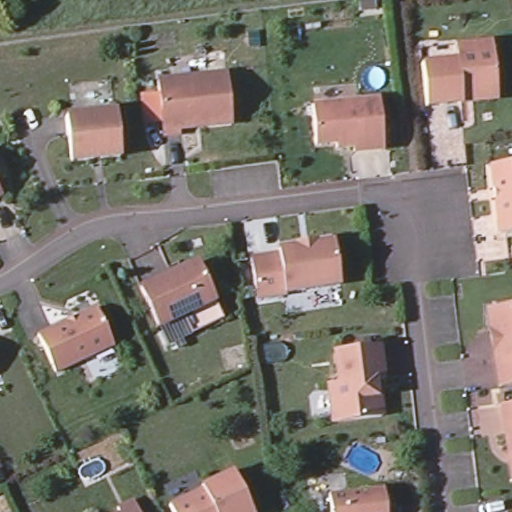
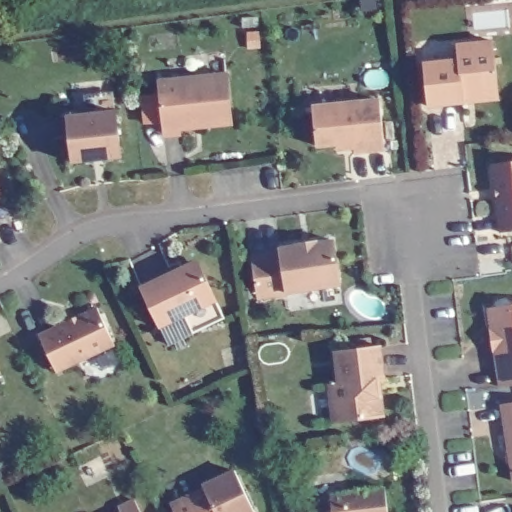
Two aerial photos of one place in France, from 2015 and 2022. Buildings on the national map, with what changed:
unchanged [(432,101),(428,58),(463,55),(461,40),(497,36),(499,51),(503,89),(498,94),(485,95),(468,97),(432,101)]
unchanged [(185,130),(185,135),(169,136),(163,80),(231,73),(236,120),(200,124),(200,127),(185,130)]
unchanged [(355,147),(337,148),(337,143),(316,145),(312,107),(380,100),(384,149),(355,152),(355,147)]
unchanged [(72,162),(67,116),(74,115),(115,111),(116,111),(121,157),(102,159),(93,160),(72,162)]
unchanged [(512,227),(505,227),(496,159),(512,157),(512,227)]
unchanged [(2,194),(0,195),(0,190),(2,194)]
unchanged [(345,279),(291,288),(291,287),(262,292),(256,252),(285,249),(284,244),(301,241),(301,239),(321,236),(321,238),(338,235),(345,279)]
unchanged [(192,327),(184,310),(159,321),(140,282),(170,268),(197,256),(199,260),(215,295),(225,312),(192,327)]
unchanged [(512,381),(505,382),(500,345),(498,345),(495,325),(496,325),(493,302),(512,300),(512,381)]
unchanged [(39,335),(97,307),(114,344),(56,371),(39,335)]
unchanged [(388,416),(338,422),(334,385),(343,383),(340,351),(385,346),(388,379),(383,380),(385,393),(388,416)]
unchanged [(512,475),(501,404),(512,402),(512,475)]
unchanged [(173,503),(203,488),(203,485),(234,470),(254,512),(174,512),(170,505),(173,503)]
unchanged [(390,487),(392,512),(337,512),(335,493),(390,487)]
unchanged [(139,500),(145,512),(126,512),(123,507),(139,500)]

